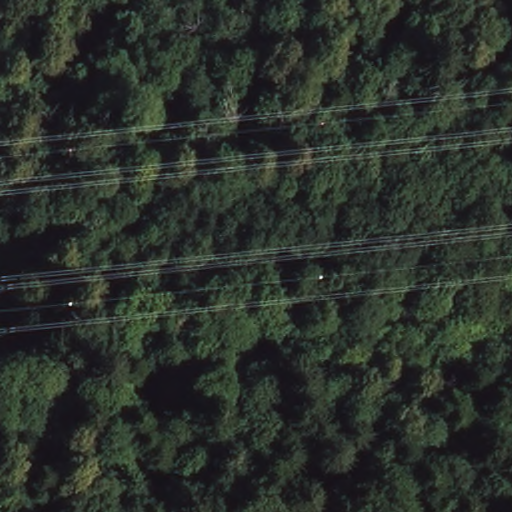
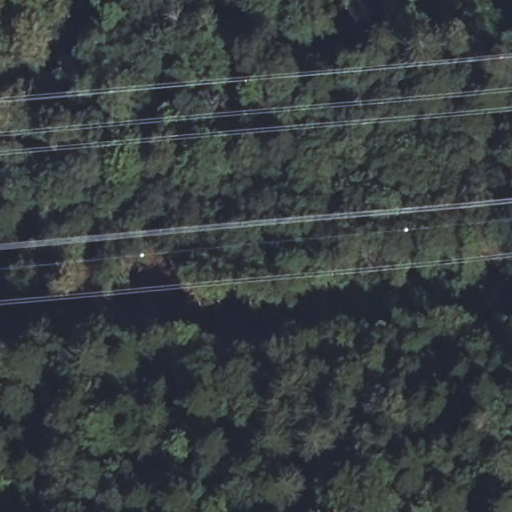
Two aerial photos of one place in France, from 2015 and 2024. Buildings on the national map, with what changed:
[]

